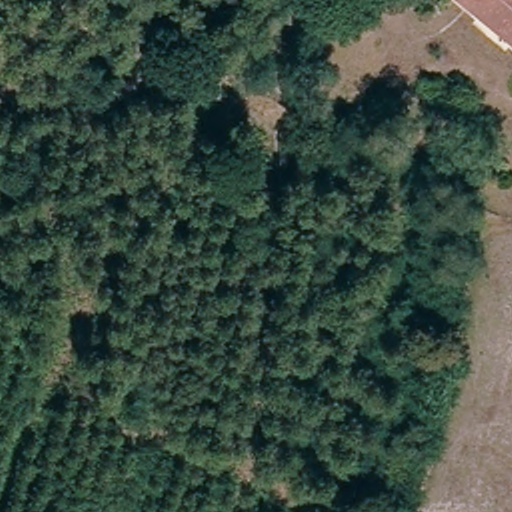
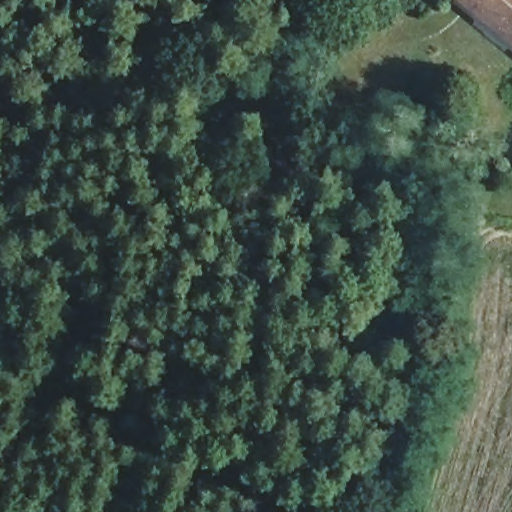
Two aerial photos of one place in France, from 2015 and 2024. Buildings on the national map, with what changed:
unchanged [(459,0),(512,0),(512,46),(479,18),(459,0)]

